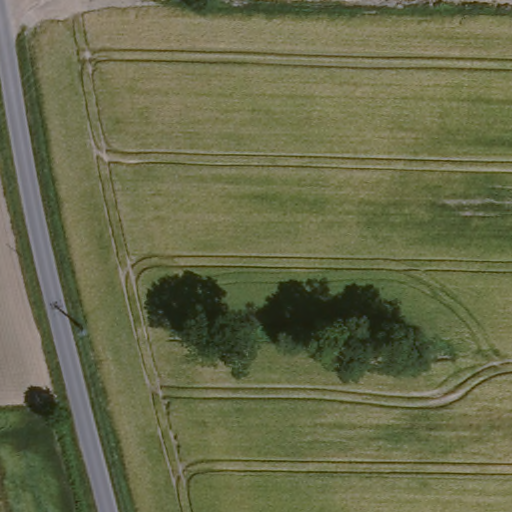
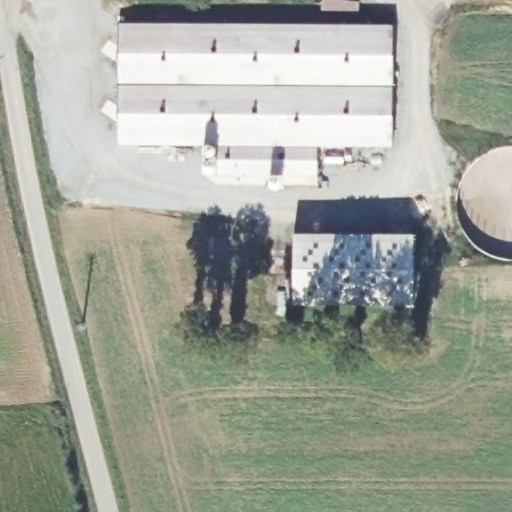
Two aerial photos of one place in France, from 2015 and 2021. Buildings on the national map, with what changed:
new [(393,148),(317,148),(318,176),(218,176),(218,147),(119,146),(120,24),(393,25),(393,148)]

